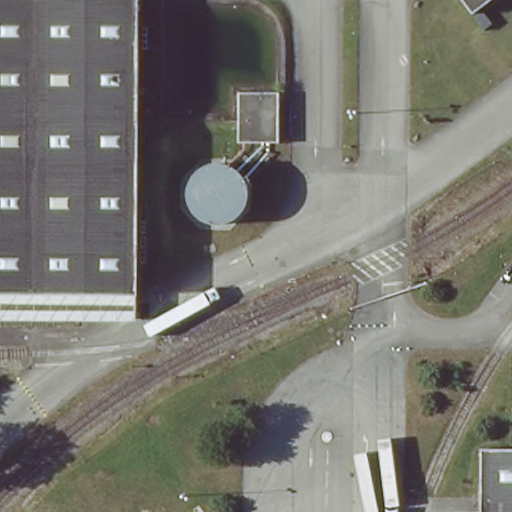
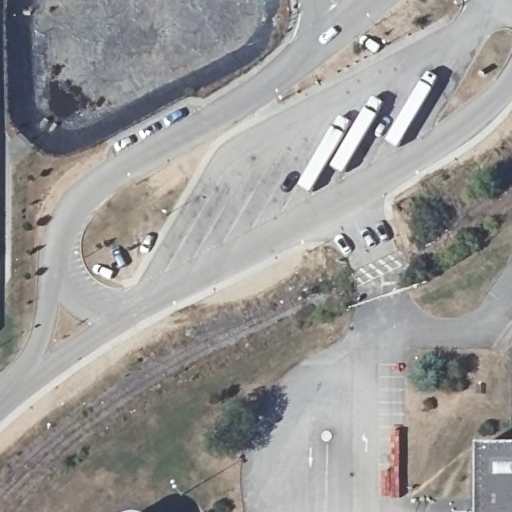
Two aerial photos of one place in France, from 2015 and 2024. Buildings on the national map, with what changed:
demolished [(0,0),(136,0),(135,294),(0,293),(0,0)]
demolished [(457,0),(484,0),(467,14),(457,0)]
demolished [(238,94),(278,93),(278,142),(238,142),(238,94)]
demolished [(317,431),(306,431),(305,481),(243,479),(246,452),(278,390),(318,392),(317,431)]
unchanged [(474,512),(474,448),(512,449),(512,512),(474,512)]
demolished [(244,512),(244,505),(295,506),(295,512),(244,512)]

